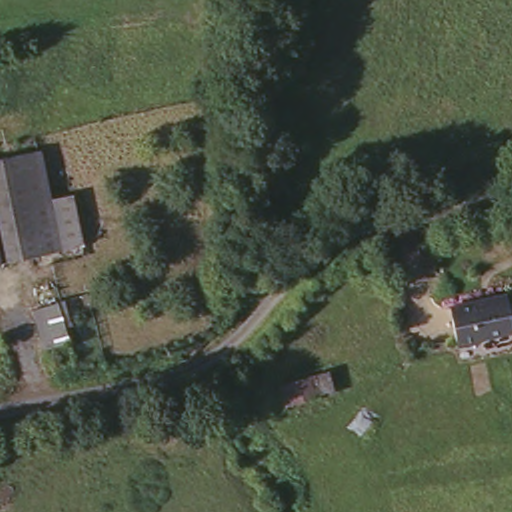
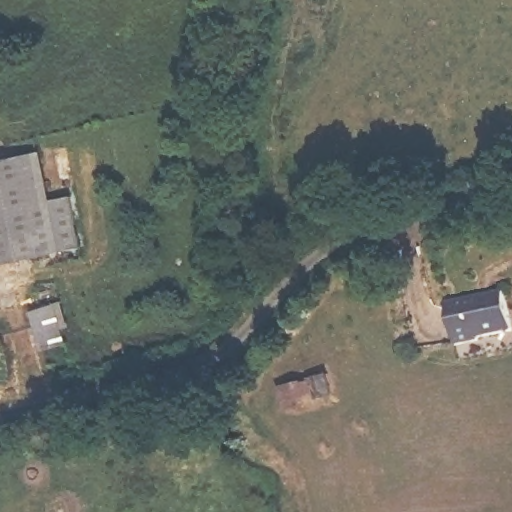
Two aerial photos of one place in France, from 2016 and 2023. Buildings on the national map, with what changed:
unchanged [(47,203),(69,198),(80,244),(0,263),(0,159),(37,150),(47,203)]
unchanged [(512,324),(512,327),(478,335),(479,337),(456,343),(447,302),(505,289),(512,324)]
unchanged [(65,297),(74,320),(49,328),(41,305),(65,297)]
unchanged [(279,384),(308,376),(319,372),(325,393),(315,396),(285,404),(279,384)]

